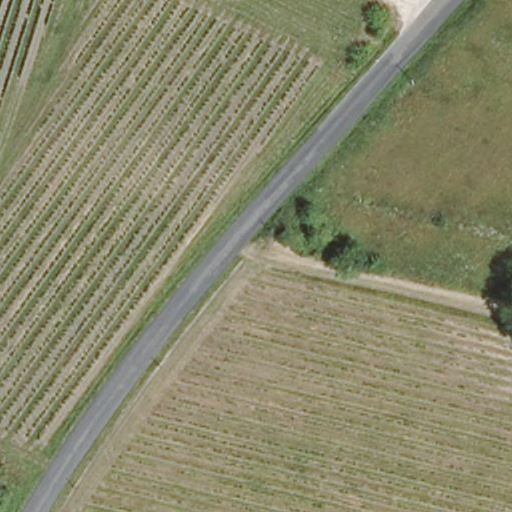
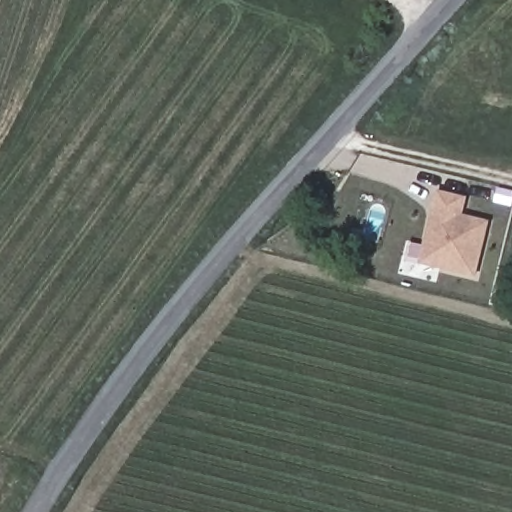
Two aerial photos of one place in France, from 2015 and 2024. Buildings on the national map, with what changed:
new [(439,189),(465,195),(460,215),(486,221),(473,273),(421,260),(426,242),(428,234),(439,189)]

